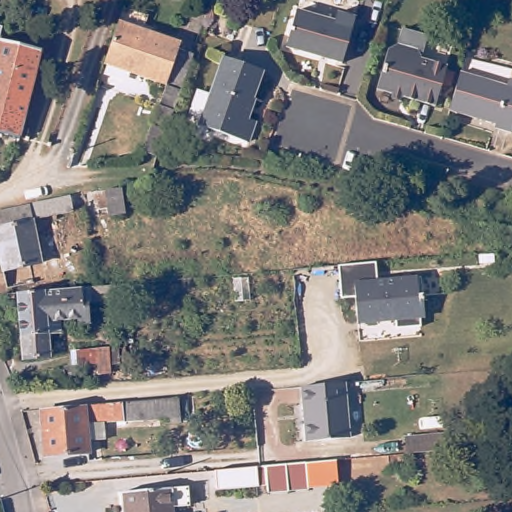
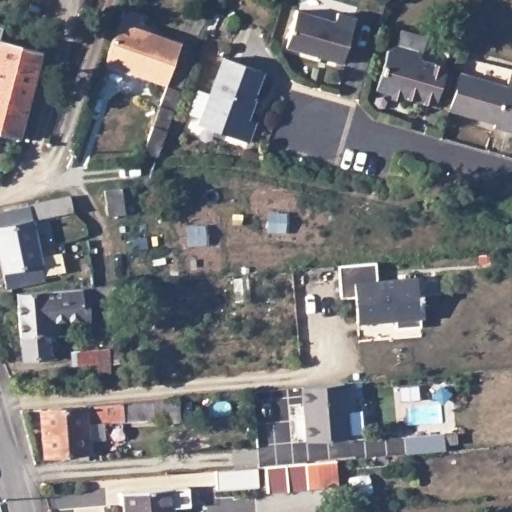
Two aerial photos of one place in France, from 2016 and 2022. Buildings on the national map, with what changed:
unchanged [(293,8),(329,19),(333,11),(350,16),(336,63),(282,47),(293,8)]
unchanged [(169,84),(108,65),(118,25),(198,54),(178,111),(163,108),(169,84)]
unchanged [(41,52),(19,136),(18,140),(0,134),(0,46),(1,41),(41,52)]
unchanged [(382,96),(384,92),(369,88),(379,48),(390,44),(409,49),(411,54),(410,57),(437,65),(426,103),(394,95),(392,99),(382,96)]
unchanged [(229,60),(265,74),(249,119),(259,122),(250,144),(203,126),(229,60)]
unchanged [(463,77),(509,91),(512,83),(512,136),(496,132),(497,128),(452,114),(463,77)]
unchanged [(114,190),(116,216),(99,217),(99,211),(91,212),(91,218),(84,219),(83,193),(114,190)]
unchanged [(63,197),(62,195),(74,192),(78,204),(64,206),(65,212),(34,219),(31,204),(63,197)]
unchanged [(34,264),(23,266),(26,284),(1,289),(0,281),(0,211),(23,207),(34,264)]
unchanged [(424,319),(419,320),(419,327),(397,329),(397,322),(358,325),(356,299),(342,301),(338,267),(376,263),(378,282),(421,278),(424,319)]
unchanged [(55,332),(44,334),(46,357),(19,360),(12,294),(87,288),(109,287),(110,301),(109,302),(41,307),(42,313),(54,313),(55,332)]
unchanged [(340,385),(344,439),(304,443),(299,388),(340,385)]
unchanged [(88,436),(89,447),(44,451),(41,408),(83,405),(84,402),(177,394),(179,408),(183,409),(183,414),(103,419),(104,435),(88,436)]
unchanged [(438,434),(439,451),(401,454),(399,437),(438,434)]
unchanged [(287,464),(307,462),(309,495),(268,498),(268,490),(217,494),(214,470),(287,464)]
unchanged [(174,507),(174,512),(125,512),(123,495),(123,493),(188,486),(190,506),(174,507)]

